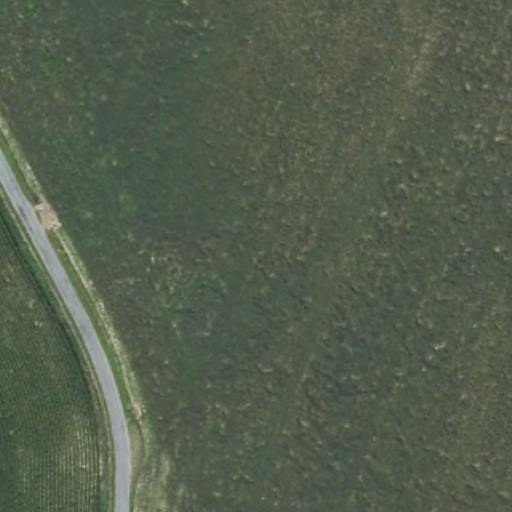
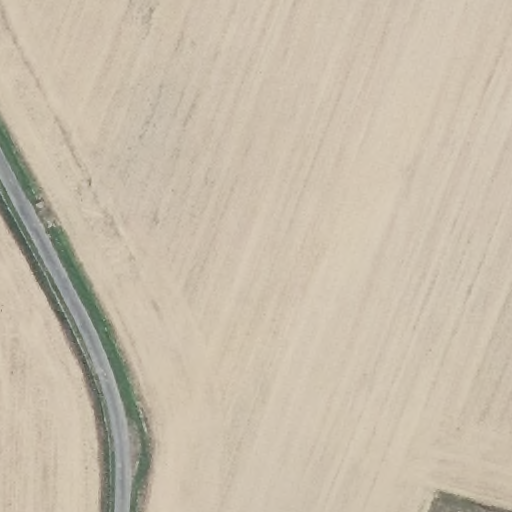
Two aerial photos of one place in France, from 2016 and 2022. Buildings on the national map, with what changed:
[]

